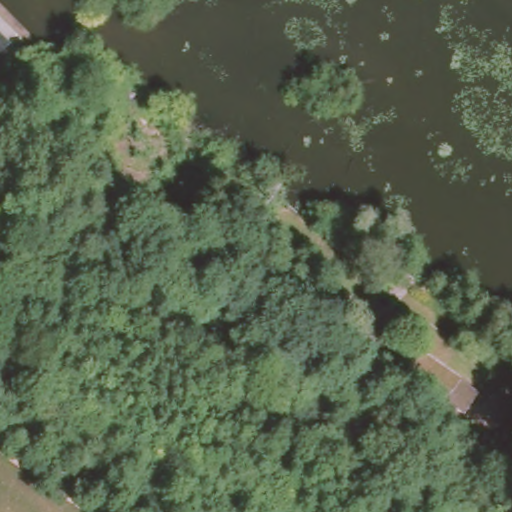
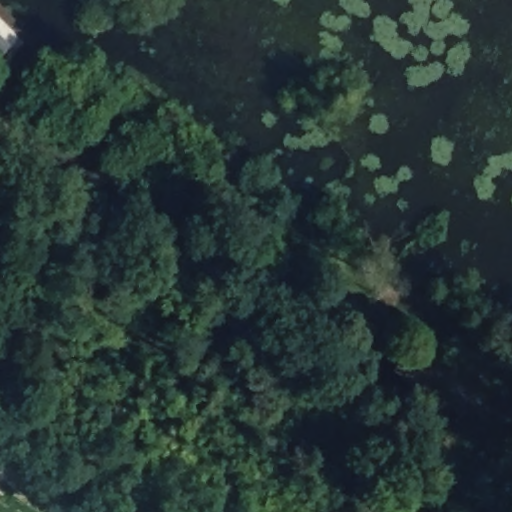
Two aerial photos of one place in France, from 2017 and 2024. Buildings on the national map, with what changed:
unchanged [(386,372),(399,353),(466,401),(452,420),(386,372)]
unchanged [(500,454),(512,439),(512,440),(512,463),(500,454)]

